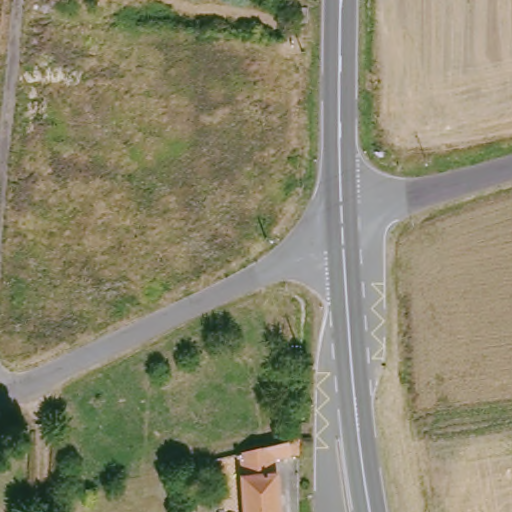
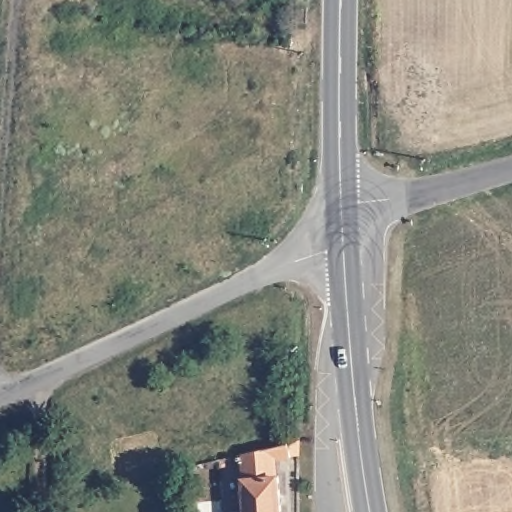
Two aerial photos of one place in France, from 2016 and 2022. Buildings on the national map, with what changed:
unchanged [(295,438),(282,438),(282,424),(295,424),(295,438)]
unchanged [(294,439),(296,453),(286,456),(286,457),(270,458),(272,474),(275,512),(241,512),(237,453),(284,442),(294,439)]

